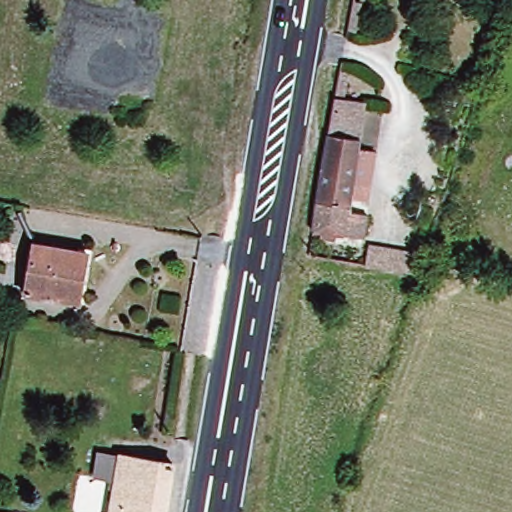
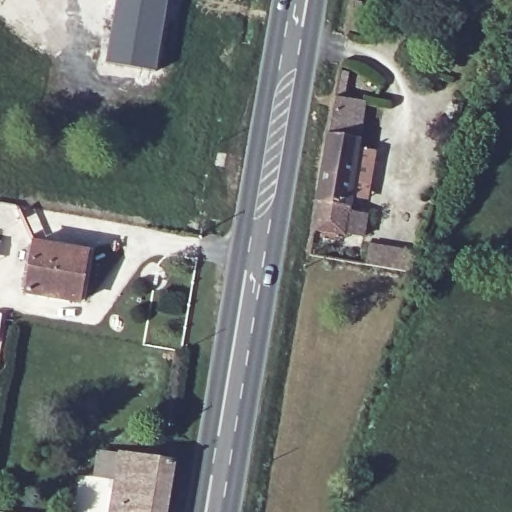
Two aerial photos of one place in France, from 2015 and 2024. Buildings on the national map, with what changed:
new [(168,0),(156,71),(105,63),(115,0),(168,0)]
unchanged [(367,196),(352,195),(350,211),(368,215),(367,236),(350,234),(349,237),(316,234),(337,100),(341,74),(352,77),(347,102),(368,105),(361,147),(373,149),(367,196)]
unchanged [(364,262),(367,242),(415,252),(411,271),(364,262)]
unchanged [(87,253),(77,303),(24,295),(34,245),(87,253)]
unchanged [(174,464),(164,512),(109,512),(120,454),(164,462),(174,464)]

